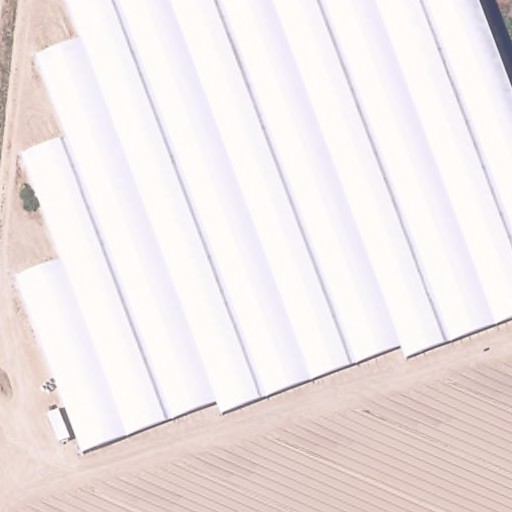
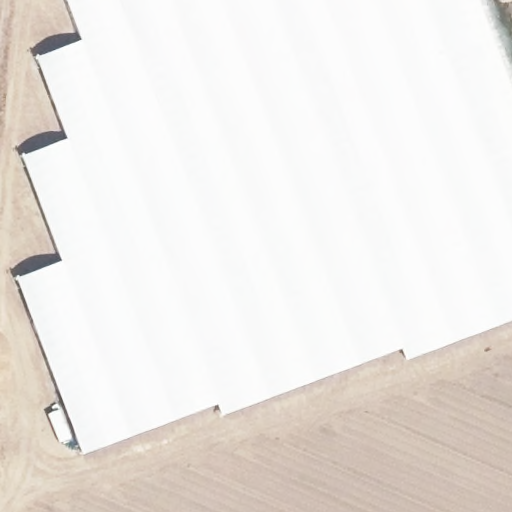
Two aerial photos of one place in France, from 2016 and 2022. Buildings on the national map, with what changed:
unchanged [(67,260),(25,154),(71,139),(40,57),(85,39),(70,0),(478,0),(512,89),(512,323),(407,360),(403,350),(226,416),(222,404),(88,452),(18,277),(67,260)]

